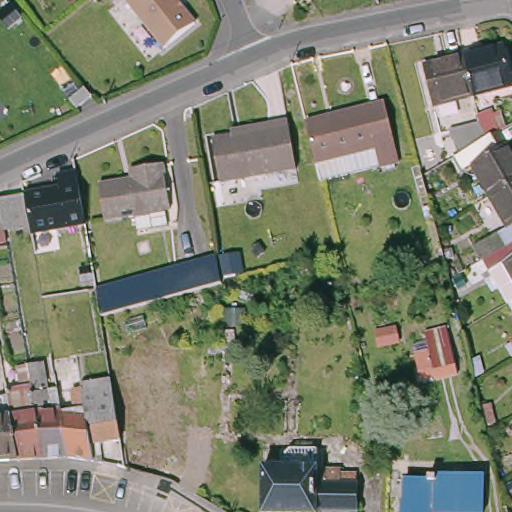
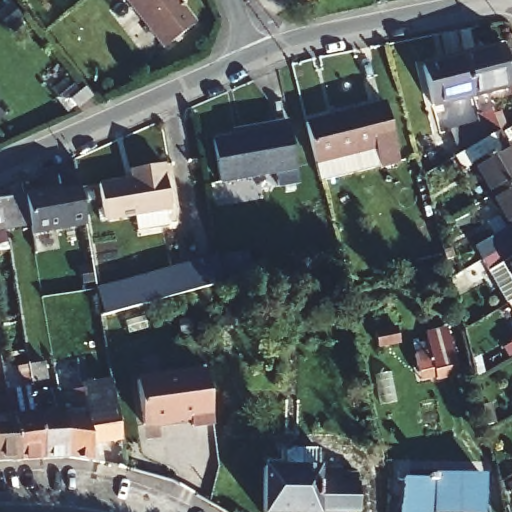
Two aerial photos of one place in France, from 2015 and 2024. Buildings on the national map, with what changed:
unchanged [(198,13),(167,39),(135,0),(187,0),(198,13)]
unchanged [(475,96),(465,55),(483,51),(484,54),(502,49),(511,87),(475,96)]
unchanged [(435,105),(425,68),(444,63),(443,60),(465,55),(475,96),(435,105)]
unchanged [(101,93),(89,102),(82,94),(95,84),(101,93)]
unchanged [(316,162),(306,122),(388,103),(401,162),(383,166),(346,174),(320,180),(316,162)]
unchanged [(297,166),(221,179),(213,139),(289,126),(297,166)]
unchanged [(512,185),(493,195),(475,163),(484,157),(476,144),(491,136),(502,130),(512,148),(512,185)]
unchanged [(172,210),(167,211),(170,225),(141,231),(138,217),(108,222),(101,187),(141,179),(140,169),(163,165),(172,210)]
unchanged [(23,191),(58,186),(56,175),(77,171),(88,225),(30,236),(28,223),(23,200),(23,191)]
unchanged [(512,243),(511,243),(506,244),(485,257),(478,245),(510,225),(493,195),(512,185),(512,243)]
unchanged [(23,200),(28,223),(1,229),(0,230),(0,206),(23,200)]
unchanged [(485,257),(506,244),(511,243),(512,243),(512,301),(510,302),(485,257)]
unchanged [(96,291),(216,257),(221,284),(100,318),(96,291)]
unchanged [(450,338),(457,370),(435,376),(428,343),(450,338)]
unchanged [(93,445),(95,458),(92,458),(85,457),(71,456),(63,413),(78,410),(69,359),(78,357),(82,385),(111,379),(121,435),(122,440),(93,445)]
unchanged [(30,374),(28,364),(45,361),(54,409),(63,409),(63,413),(71,456),(46,457),(30,374)]
new [(206,369),(213,421),(192,424),(191,416),(143,423),(137,378),(206,369)]
unchanged [(66,372),(67,381),(62,382),(65,394),(60,394),(56,374),(66,372)]
unchanged [(15,387),(8,389),(6,375),(12,374),(15,387)]
unchanged [(21,458),(13,414),(12,410),(26,407),(20,377),(30,374),(46,457),(21,458)]
unchanged [(8,389),(12,410),(13,414),(21,458),(0,459),(0,391),(8,389)]
unchanged [(340,460),(341,476),(341,480),(357,479),(358,512),(265,512),(263,479),(310,477),(310,461),(340,460)]
unchanged [(448,512),(430,511),(430,512),(400,512),(400,510),(403,510),(404,483),(428,484),(428,478),(435,478),(435,475),(481,477),(481,512),(448,512)]

